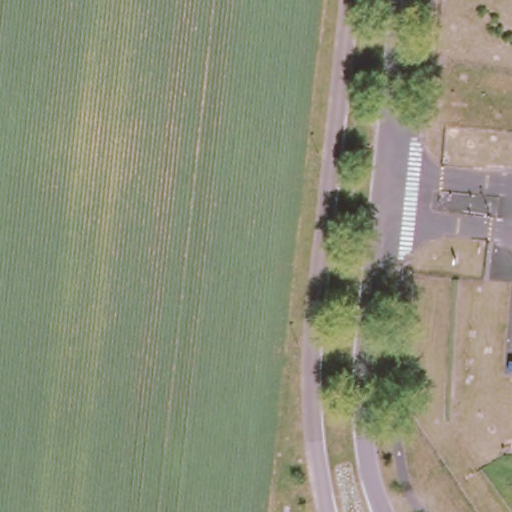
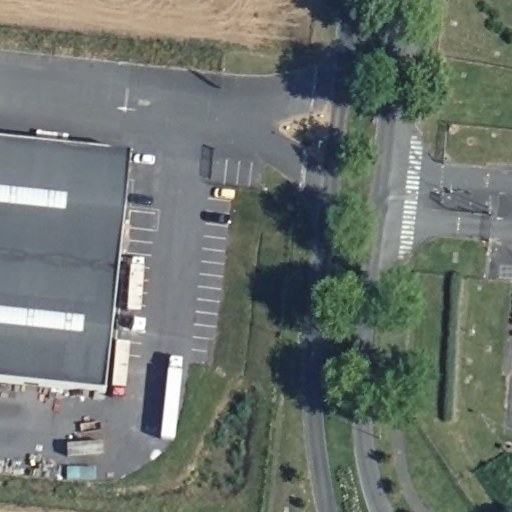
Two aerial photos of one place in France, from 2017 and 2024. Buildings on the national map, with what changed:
new [(133,157),(107,395),(0,384),(0,143),(133,157)]

